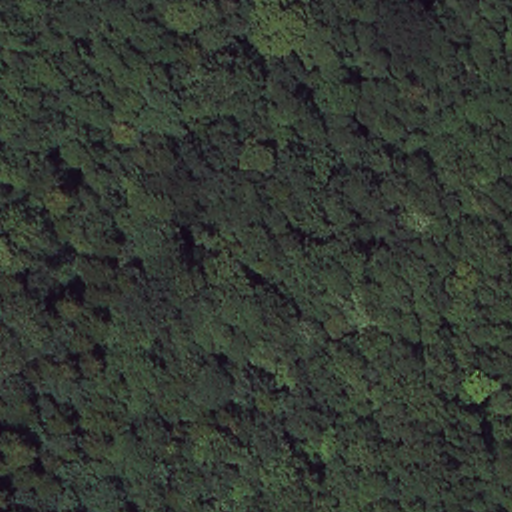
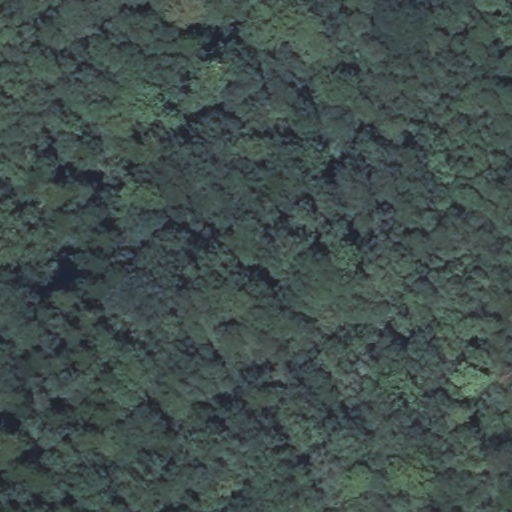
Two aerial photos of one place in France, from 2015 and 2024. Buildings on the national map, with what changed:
[]

